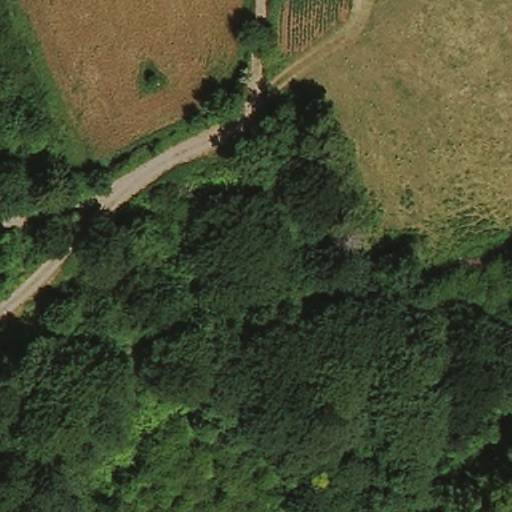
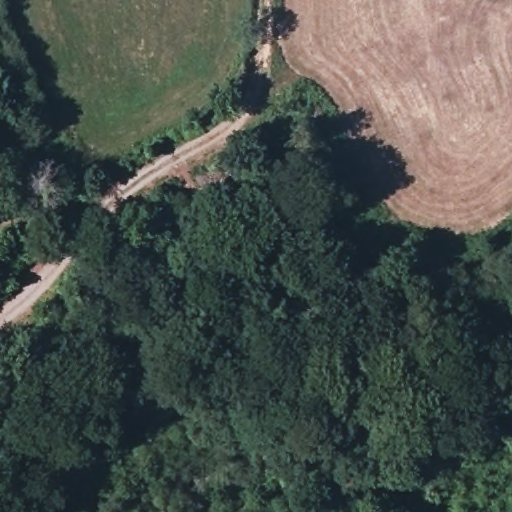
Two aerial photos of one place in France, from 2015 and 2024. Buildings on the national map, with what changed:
[]

